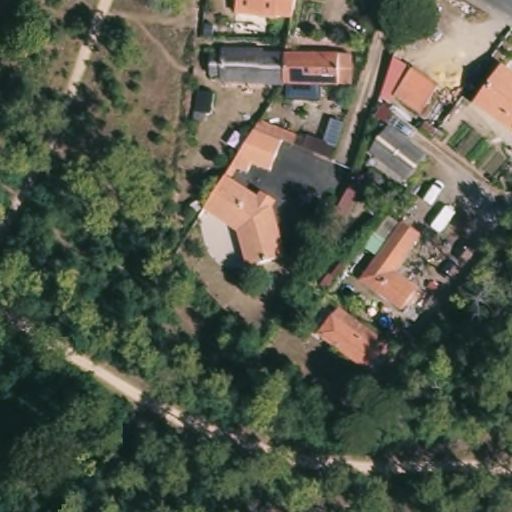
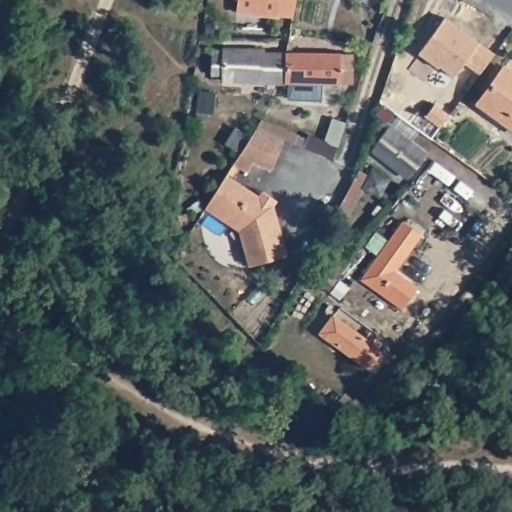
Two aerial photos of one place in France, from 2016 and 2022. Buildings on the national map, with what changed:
unchanged [(275,19),(277,6),(230,0),(302,0),(298,21),(275,19)]
unchanged [(328,1),(318,0),(328,0),(328,1)]
new [(444,17),(479,43),(454,77),(439,66),(438,68),(418,54),(444,17)]
unchanged [(210,78),(210,52),(222,53),(222,51),(285,54),(285,81),(210,78)]
unchanged [(285,54),(352,56),(353,84),(285,81),(285,54)]
unchanged [(502,69),(512,76),(512,127),(477,103),(502,69)]
unchanged [(412,70),(438,87),(420,113),(394,95),(412,70)]
unchanged [(198,91),(214,92),(212,114),(207,114),(207,120),(194,119),(198,91)]
unchanged [(389,116),(381,127),(371,120),(376,107),(389,116)]
unchanged [(226,174),(232,166),(254,130),(259,122),(295,137),(292,145),(281,140),(269,171),(249,163),(246,172),(235,168),(231,177),(226,174)]
unchanged [(373,150),(369,148),(377,129),(419,161),(402,181),(368,156),(373,150)]
unchanged [(331,160),(308,151),(312,142),(334,151),(331,160)]
unchanged [(259,197),(272,205),(269,211),(280,261),(249,268),(242,230),(204,207),(222,181),(255,203),(259,197)]
unchanged [(332,204),(321,226),(309,221),(321,198),(332,204)]
unchanged [(403,223),(419,234),(394,272),(416,289),(402,306),(363,279),(362,279),(403,223)]
unchanged [(358,372),(328,351),(319,345),(332,328),(340,335),(370,355),(358,372)]

